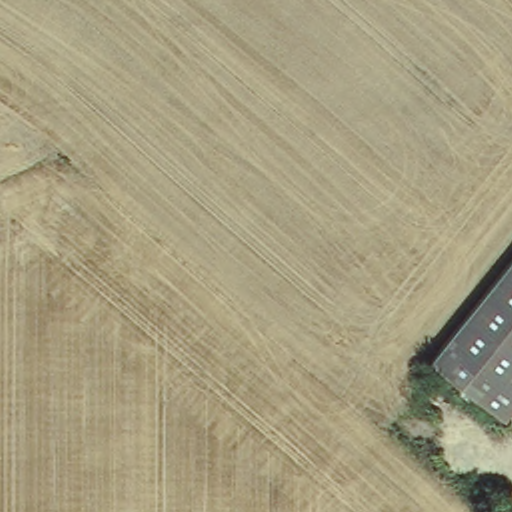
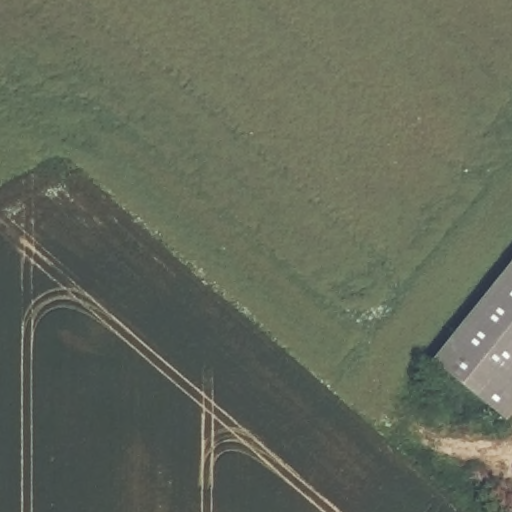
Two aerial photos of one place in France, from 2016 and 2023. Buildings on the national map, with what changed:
unchanged [(512,254),(512,414),(506,421),(429,361),(512,254)]

